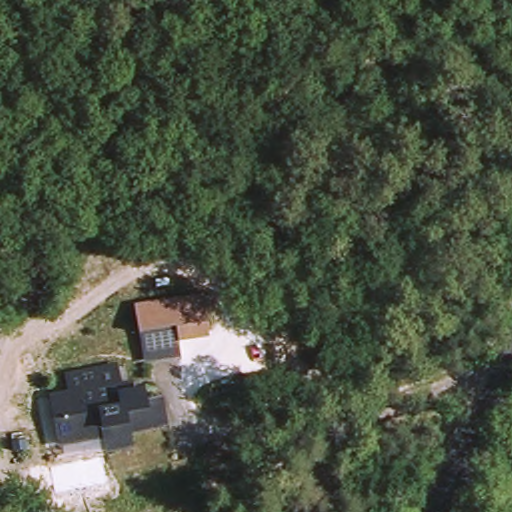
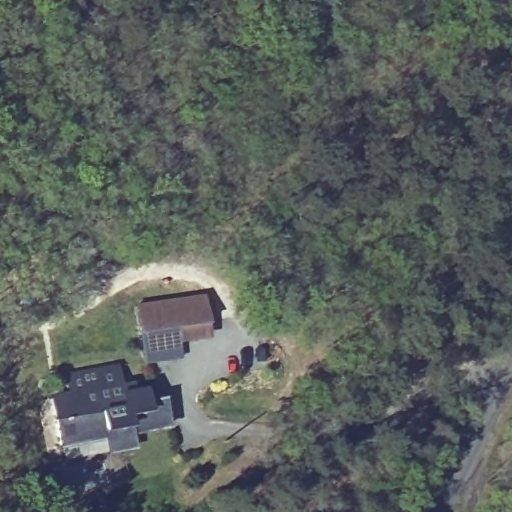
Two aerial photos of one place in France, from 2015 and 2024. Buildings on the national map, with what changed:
unchanged [(180,344),(184,360),(144,366),(139,338),(134,305),(203,293),(209,341),(180,344)]
unchanged [(133,368),(133,388),(111,388),(113,406),(133,406),(133,396),(154,396),(155,407),(174,407),(174,439),(138,439),(138,452),(113,453),(113,439),(70,440),(69,415),(94,415),(94,389),(83,390),(81,370),(133,368)]

